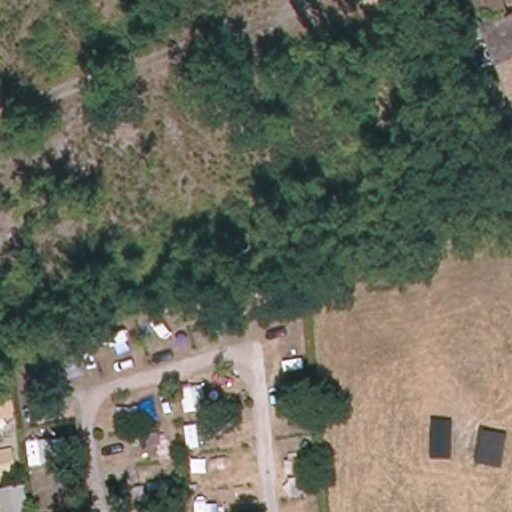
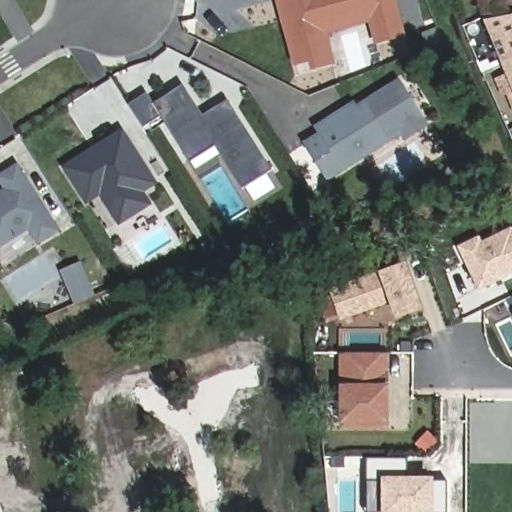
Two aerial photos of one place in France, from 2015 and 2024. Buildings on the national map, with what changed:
new [(380,35),(373,10),(324,23),(333,55),(316,60),(313,51),(300,55),(294,34),(284,0),(395,0),(403,28),(380,35)]
unchanged [(481,13),(476,0),(502,0),(505,10),(481,13)]
new [(326,30),(324,23),(373,10),(375,16),(326,30)]
unchanged [(512,15),(512,87),(487,25),(512,15)]
new [(354,101),(357,105),(401,79),(430,127),(405,142),(401,135),(328,181),(304,144),(320,134),(314,125),(354,101)]
new [(271,165),(246,181),(219,140),(191,157),(160,109),(143,120),(130,99),(146,88),(153,99),(182,80),(202,111),(227,95),(271,165)]
new [(63,167),(124,129),(159,185),(146,194),(153,205),(120,226),(100,196),(87,205),(63,167)]
new [(5,190),(0,182),(0,174),(18,164),(60,230),(38,245),(29,230),(0,248),(0,193),(5,190)]
new [(455,245),(474,235),(476,241),(506,226),(507,230),(512,227),(512,267),(475,285),(455,245)]
new [(415,308),(393,316),(388,300),(338,318),(329,292),(400,266),(415,308)]
new [(83,267),(96,296),(80,303),(67,274),(83,267)]
new [(385,425),(342,426),(340,353),(384,352),(385,425)]
demolished [(19,462),(0,466),(0,451),(18,450),(19,462)]
new [(366,497),(366,458),(407,458),(407,483),(416,483),(417,480),(448,480),(448,512),(366,512),(366,497)]
demolished [(18,498),(19,512),(0,512),(0,501),(18,498)]

